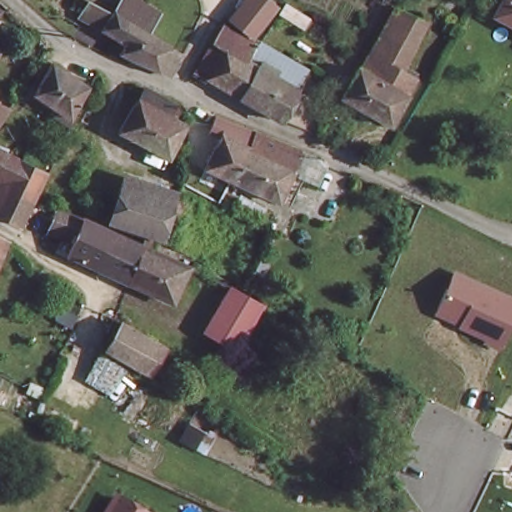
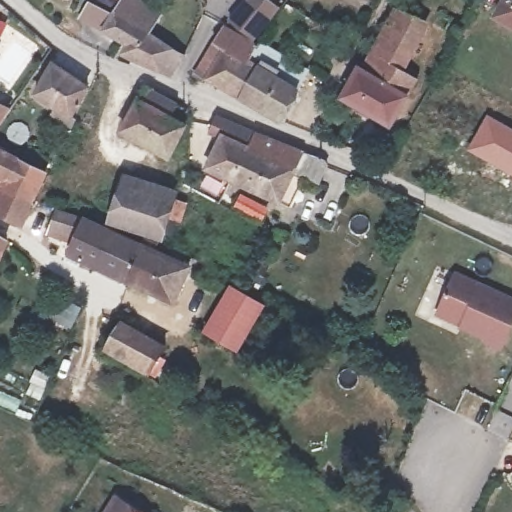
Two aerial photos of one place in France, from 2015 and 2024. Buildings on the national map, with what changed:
unchanged [(110,40),(115,31),(98,21),(85,12),(90,0),(102,0),(107,2),(116,7),(117,5),(119,0),(148,0),(156,5),(147,22),(144,26),(165,40),(184,52),(173,69),(151,58),(110,40)]
unchanged [(253,47),(247,60),(215,41),(230,21),(251,0),(270,0),(279,7),(255,40),(253,47)]
unchanged [(501,20),(512,0),(512,26),(501,20)]
unchanged [(0,10),(0,5),(2,6),(0,10)]
unchanged [(362,70),(395,12),(422,27),(402,65),(417,75),(389,126),(340,97),(357,67),(362,70)]
unchanged [(280,121),(209,77),(205,81),(195,75),(215,41),(247,60),(253,47),(257,50),(260,44),(306,71),(280,121)]
unchanged [(77,115),(58,102),(40,89),(58,61),(75,74),(92,87),(77,115)]
unchanged [(0,113),(0,83),(17,91),(0,113)]
unchanged [(154,90),(185,107),(180,118),(189,123),(173,156),(127,130),(150,88),(154,90)]
new [(486,114),(512,128),(512,176),(465,150),(486,114)]
unchanged [(252,132),(236,182),(207,167),(224,129),(215,125),(219,118),(252,132)]
unchanged [(252,132),(282,147),(315,157),(305,176),(293,170),(277,202),(236,182),(252,132)]
unchanged [(0,191),(7,174),(0,171),(0,142),(21,152),(44,162),(20,220),(0,210),(0,191)]
unchanged [(110,222),(123,185),(185,206),(181,216),(172,212),(161,240),(110,222)]
unchanged [(69,256),(77,237),(51,227),(57,212),(87,222),(110,232),(95,267),(69,256)]
unchanged [(110,232),(143,246),(127,282),(95,267),(110,232)]
unchanged [(0,258),(0,236),(7,240),(0,258)]
unchanged [(159,243),(155,252),(188,266),(172,303),(127,282),(143,246),(147,238),(159,243)]
unchanged [(502,351),(485,343),(485,338),(435,316),(455,270),(512,295),(512,327),(502,351)]
unchanged [(207,332),(234,287),(267,305),(240,351),(207,332)]
unchanged [(112,348),(127,323),(168,347),(153,373),(112,348)]
unchanged [(115,494),(146,512),(105,512),(115,494)]

